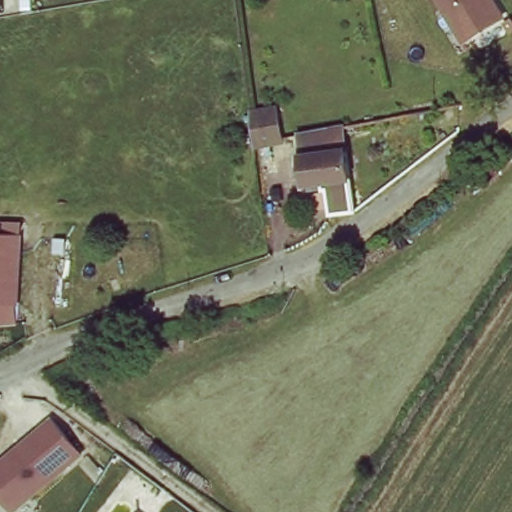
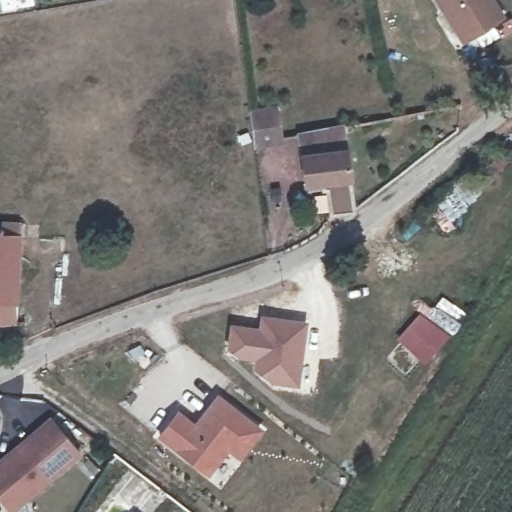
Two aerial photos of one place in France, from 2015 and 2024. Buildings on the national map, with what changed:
unchanged [(437,0),(489,0),(501,18),(460,39),(437,0)]
unchanged [(275,103),(283,135),(279,136),(260,140),(259,141),(259,111),(259,107),(259,106),(275,102),(275,103)]
unchanged [(306,181),(305,137),(334,129),(345,125),(352,191),(333,207),(329,179),(306,181)]
unchanged [(13,231),(13,319),(0,319),(0,231),(13,231)]
new [(423,363),(395,339),(419,313),(449,334),(423,363)]
new [(270,382),(253,369),(253,359),(237,358),(225,348),(230,324),(259,326),(261,315),(306,322),(298,386),(270,382)]
new [(228,451),(208,477),(157,437),(177,410),(195,424),(218,394),(264,430),(240,459),(228,451)]
unchanged [(45,418),(73,452),(7,507),(0,499),(0,455),(45,418)]

